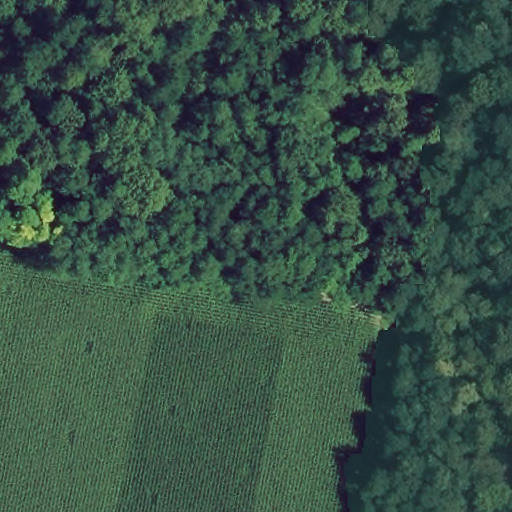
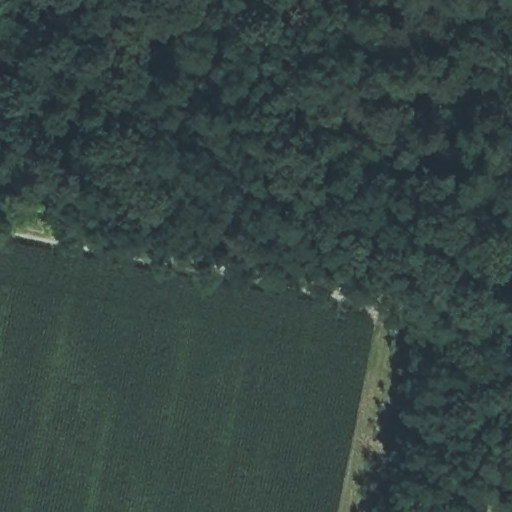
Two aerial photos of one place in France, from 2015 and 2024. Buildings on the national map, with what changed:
unchanged [(512,504),(507,503),(510,491),(512,491),(512,504)]

